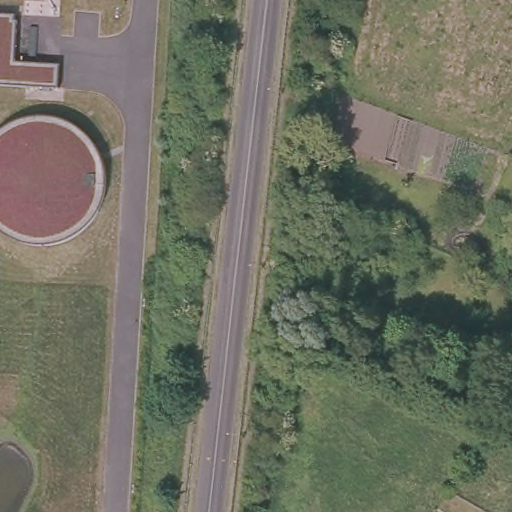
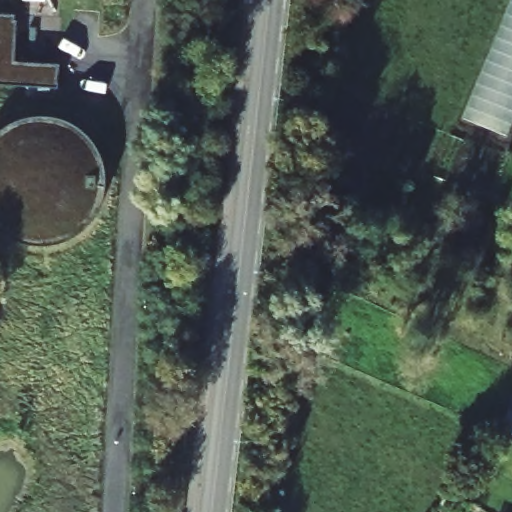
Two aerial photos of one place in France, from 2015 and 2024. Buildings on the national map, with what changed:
new [(462,119),(511,0),(512,0),(512,126),(508,137),(462,119)]
unchanged [(14,16),(14,22),(16,23),(14,63),(58,66),(56,89),(0,85),(0,15),(14,16)]

